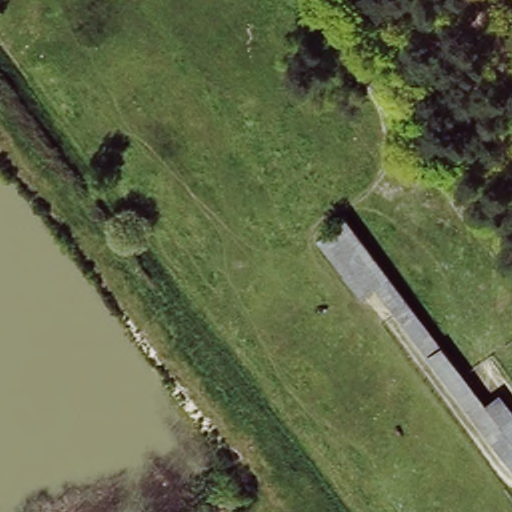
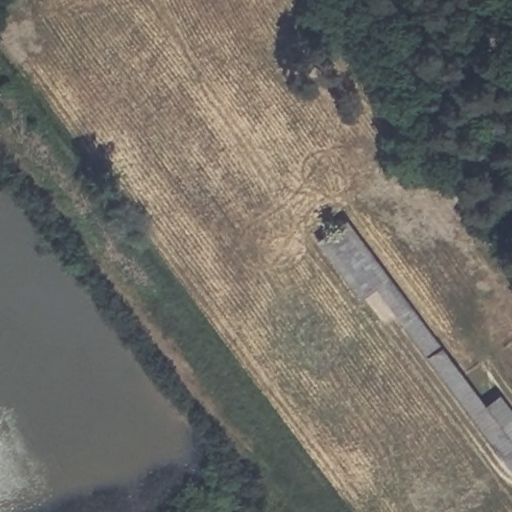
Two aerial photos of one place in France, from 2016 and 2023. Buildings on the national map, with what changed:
unchanged [(361,298),(311,235),(341,215),(477,399),(494,388),(512,414),(512,470),(511,471),(375,290),(361,298)]

